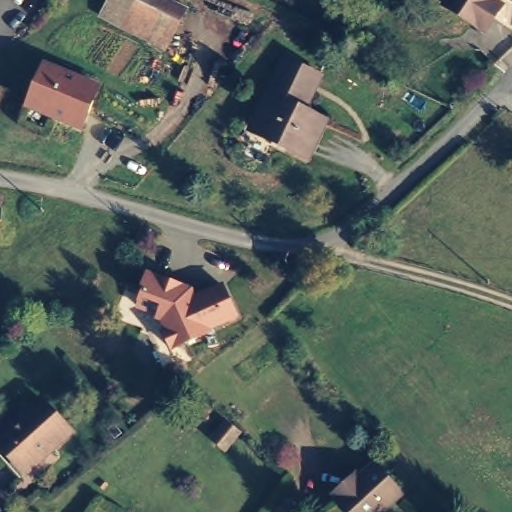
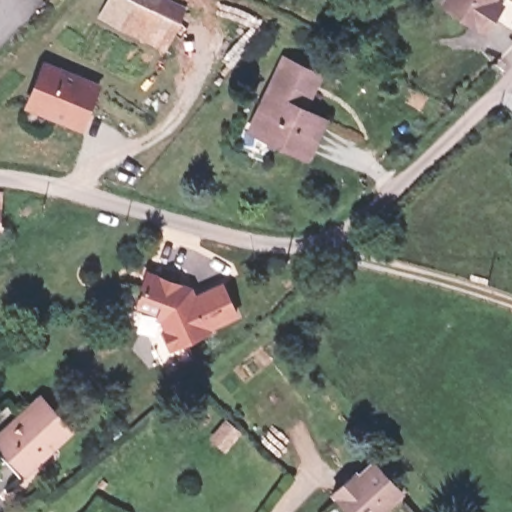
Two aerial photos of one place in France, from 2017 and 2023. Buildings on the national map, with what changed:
unchanged [(109,0),(159,0),(151,20),(109,0)]
unchanged [(451,0),(500,0),(486,21),(451,0)]
unchanged [(304,67),(294,97),(324,112),(306,155),(248,122),(261,85),(271,84),(273,79),(268,72),(275,55),(304,67)]
unchanged [(28,94),(43,60),(95,85),(79,125),(47,112),(25,102),(28,94)]
unchanged [(188,290),(191,302),(224,283),(240,314),(209,330),(210,336),(179,351),(171,320),(143,308),(149,278),(188,290)]
unchanged [(0,444),(4,440),(43,398),(76,430),(27,480),(11,465),(0,454),(0,444)]
unchanged [(252,418),(241,434),(229,426),(240,411),(252,418)]
unchanged [(376,465),(404,496),(385,512),(354,512),(339,493),(376,465)]

